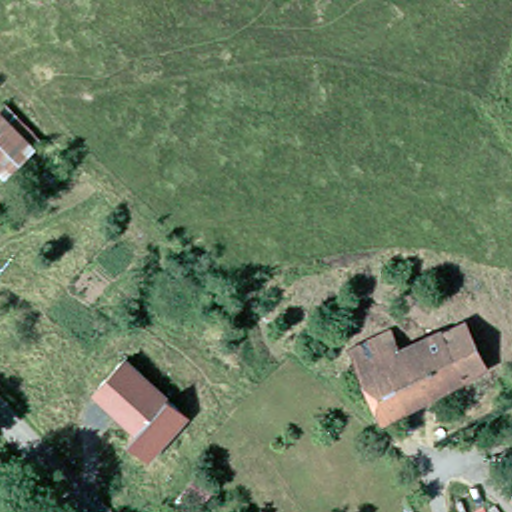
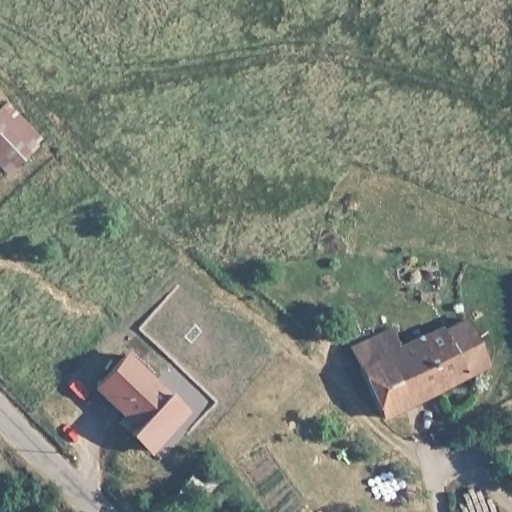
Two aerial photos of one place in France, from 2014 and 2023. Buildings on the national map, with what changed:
unchanged [(34,140),(5,169),(0,163),(0,106),(34,140)]
unchanged [(390,320),(399,340),(467,316),(487,363),(378,408),(347,336),(390,320)]
unchanged [(136,425),(143,418),(100,380),(112,368),(130,348),(192,403),(177,419),(156,443),(136,425)]
unchanged [(185,485),(205,460),(220,473),(202,497),(185,485)]

